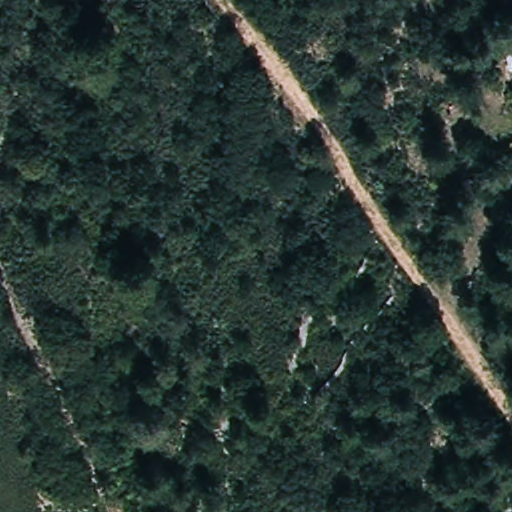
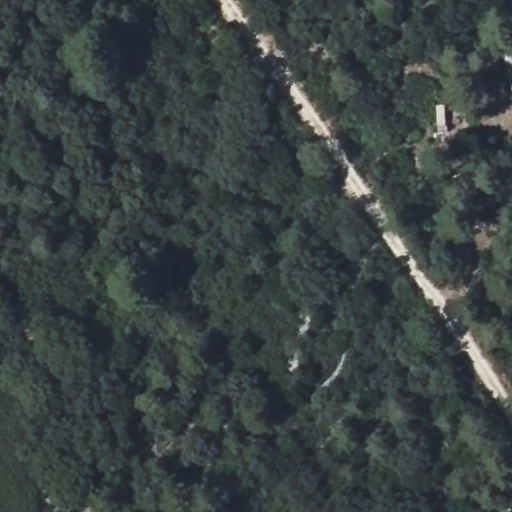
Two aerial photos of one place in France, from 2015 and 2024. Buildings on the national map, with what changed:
unchanged [(507,72),(504,55),(512,53),(512,70),(507,72)]

